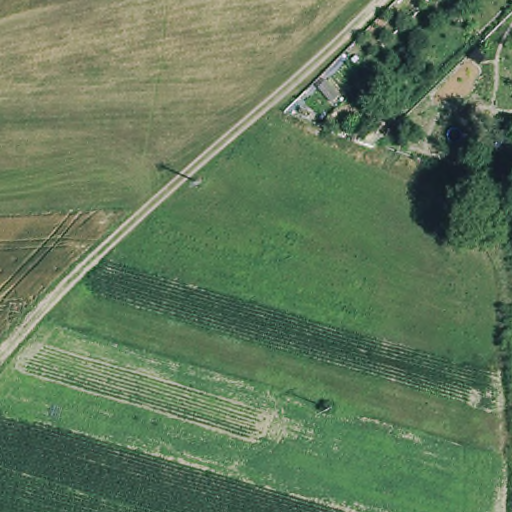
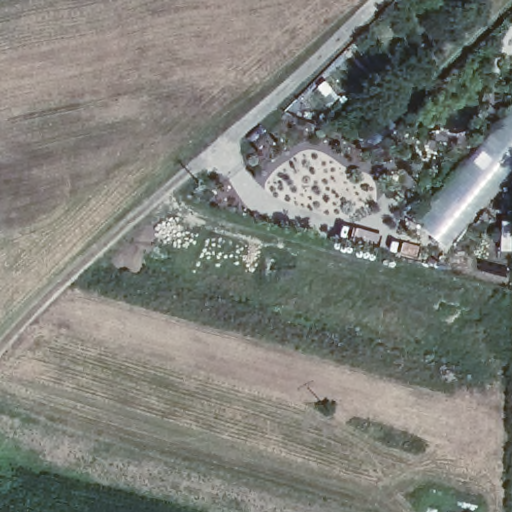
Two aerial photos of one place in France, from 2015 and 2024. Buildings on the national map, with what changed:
new [(417,223),(512,112),(512,173),(447,249),(417,223)]

